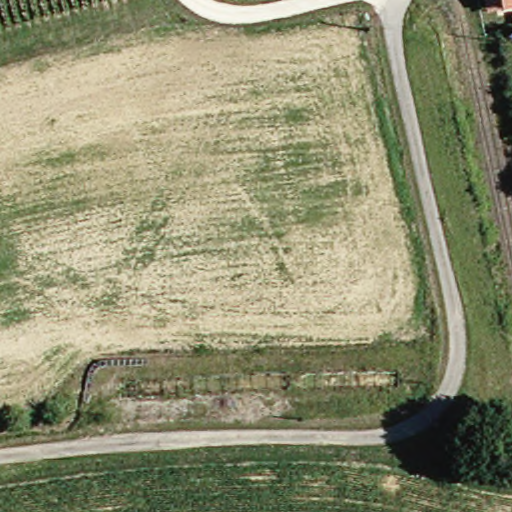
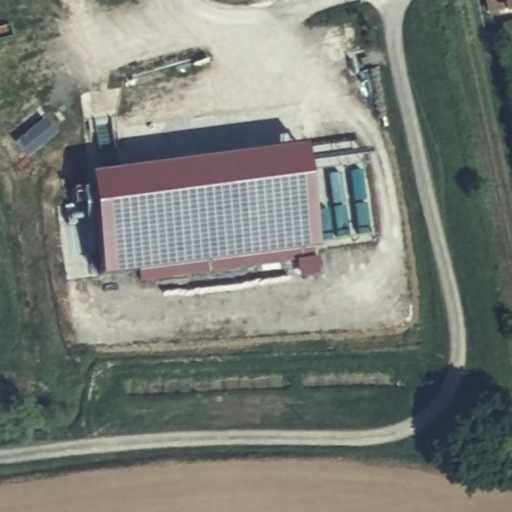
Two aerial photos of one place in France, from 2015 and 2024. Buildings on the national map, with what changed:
unchanged [(512,0),(512,10),(506,11),(504,0),(512,0)]
new [(296,154),(307,256),(91,281),(79,180),(296,154)]

